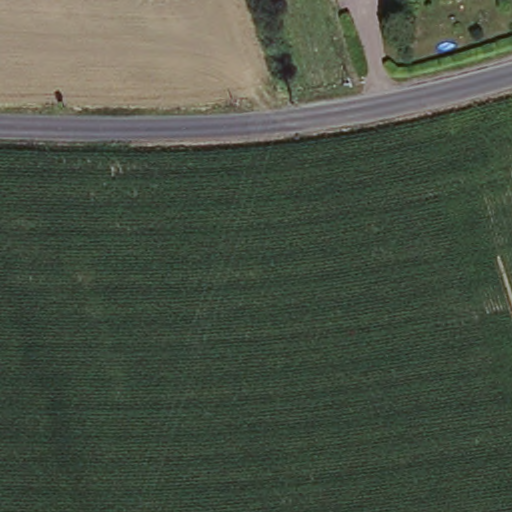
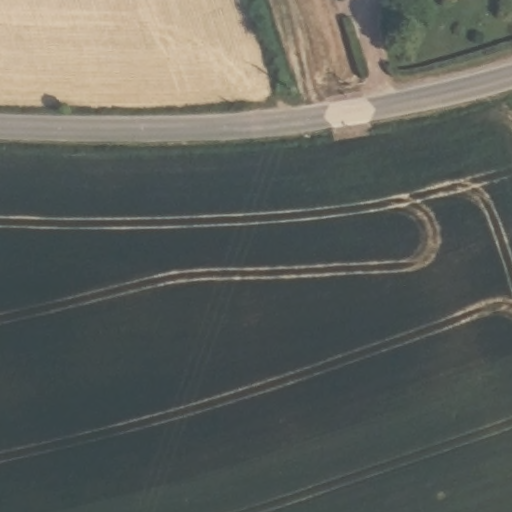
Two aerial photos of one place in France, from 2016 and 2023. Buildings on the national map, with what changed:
[]

